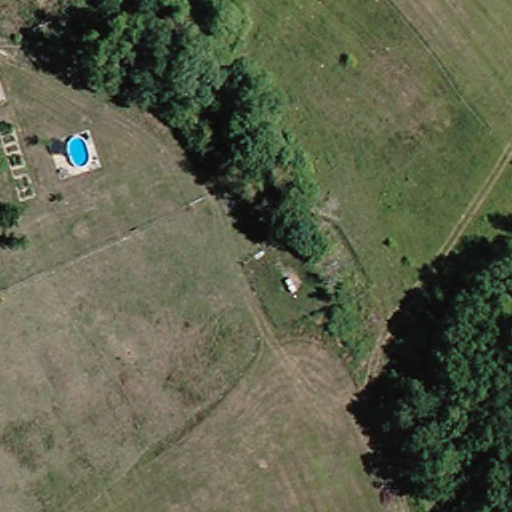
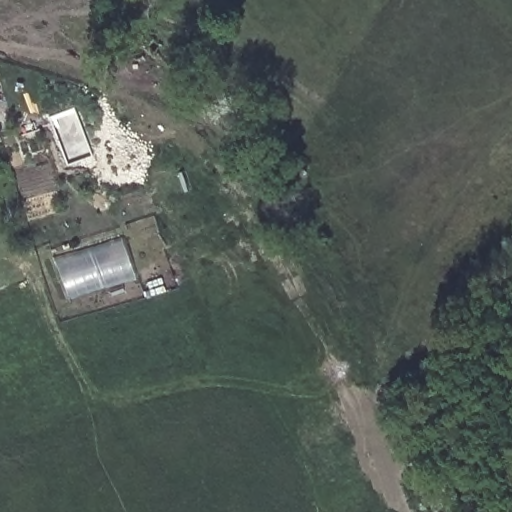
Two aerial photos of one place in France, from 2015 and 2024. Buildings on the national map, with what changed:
new [(137,281),(69,300),(56,260),(124,240),(137,281)]

